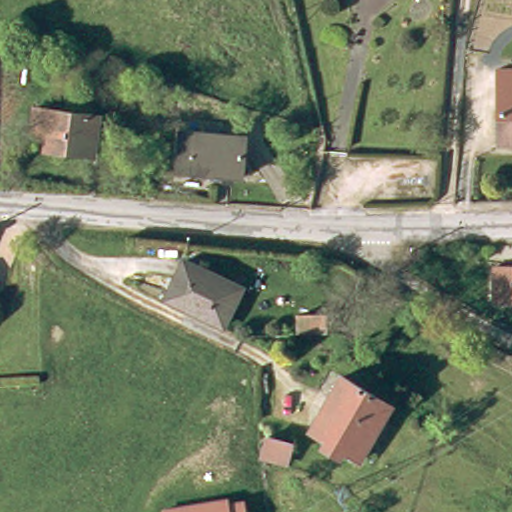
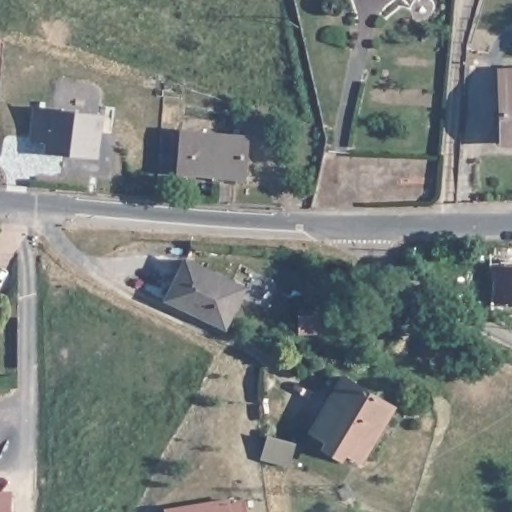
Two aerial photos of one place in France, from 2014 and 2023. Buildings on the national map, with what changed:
unchanged [(505,146),(501,76),(512,76),(512,146),(505,146)]
unchanged [(92,159),(45,156),(45,142),(32,142),(35,115),(97,122),(92,159)]
unchanged [(239,176),(180,172),(182,135),(242,140),(239,176)]
unchanged [(170,305),(191,266),(245,292),(225,331),(209,323),(187,313),(170,305)]
unchanged [(499,273),(512,274),(512,303),(498,302),(499,273)]
unchanged [(325,331),(296,331),(297,312),(325,313),(325,331)]
unchanged [(350,468),(354,462),(315,439),(347,386),(395,415),(365,468),(359,465),(355,471),(350,468)]
unchanged [(288,463),(262,458),(268,438),(292,443),(288,463)]
new [(11,512),(0,512),(0,488),(11,488),(11,512)]
unchanged [(241,496),(244,512),(163,512),(162,506),(241,496)]

